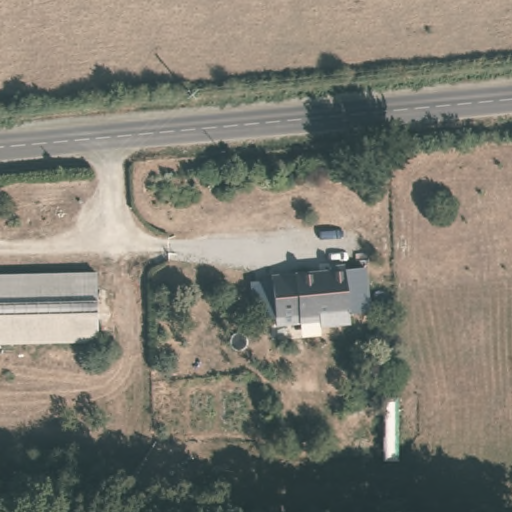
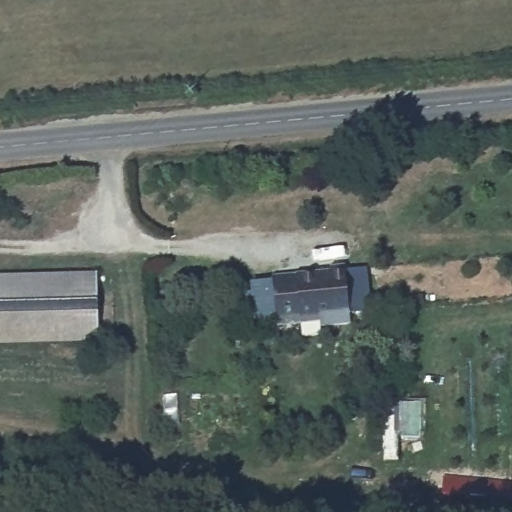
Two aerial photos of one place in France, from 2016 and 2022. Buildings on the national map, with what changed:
unchanged [(295,271),(344,266),(349,321),(322,324),(322,323),(276,328),(271,277),(296,275),(295,271)]
unchanged [(96,278),(98,349),(0,352),(0,281),(96,278)]

